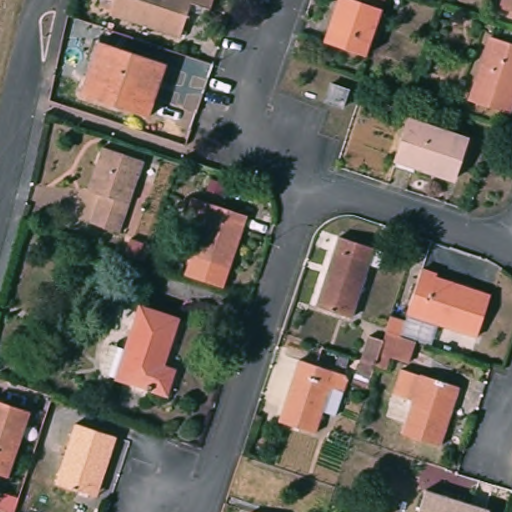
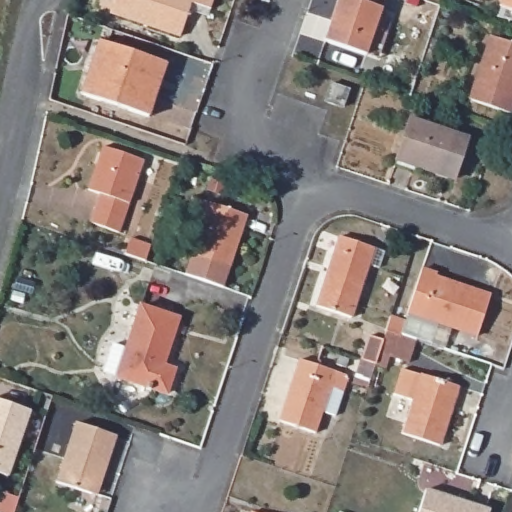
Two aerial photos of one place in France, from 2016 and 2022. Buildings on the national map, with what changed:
unchanged [(215,9),(195,2),(185,33),(113,10),(116,0),(218,0),(215,9)]
unchanged [(384,10),(370,52),(326,39),(338,0),(354,0),(384,10)]
unchanged [(384,10),(354,0),(387,0),(384,10)]
unchanged [(503,1),(503,0),(512,0),(512,4),(503,1)]
unchanged [(512,45),(512,97),(507,113),(467,99),(487,37),(512,45)]
unchanged [(165,63),(148,116),(82,94),(99,42),(165,63)]
unchanged [(329,85),(347,91),(341,109),(323,103),(329,85)]
unchanged [(466,141),(454,180),(397,162),(410,123),(466,141)]
unchanged [(145,151),(118,234),(90,225),(103,184),(93,180),(106,138),(145,151)]
unchanged [(246,213),(227,266),(189,254),(203,213),(187,208),(191,195),(246,213)]
unchanged [(377,249),(353,318),(320,307),(343,238),(377,249)]
unchanged [(129,261),(135,246),(154,252),(149,267),(141,265),(134,263),(129,261)]
unchanged [(434,271),(433,274),(489,292),(475,333),(406,310),(420,266),(434,271)]
unchanged [(182,313),(166,362),(177,366),(169,390),(119,373),(143,300),(182,313)]
unchanged [(407,327),(404,335),(387,329),(389,321),(407,327)]
unchanged [(369,332),(384,337),(376,361),(361,356),(369,332)]
unchanged [(339,368),(318,430),(282,418),(303,356),(339,368)]
unchanged [(459,389),(440,447),(402,434),(422,376),(459,389)]
unchanged [(8,475),(0,473),(0,402),(27,411),(8,475)]
unchanged [(114,435),(94,494),(55,481),(75,422),(114,435)]
unchanged [(420,512),(427,492),(488,512),(420,512)]

